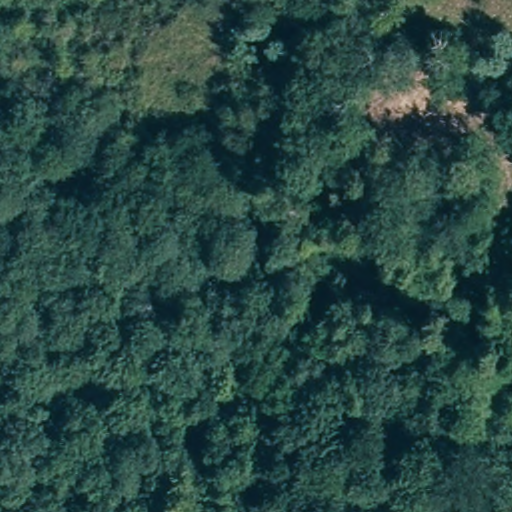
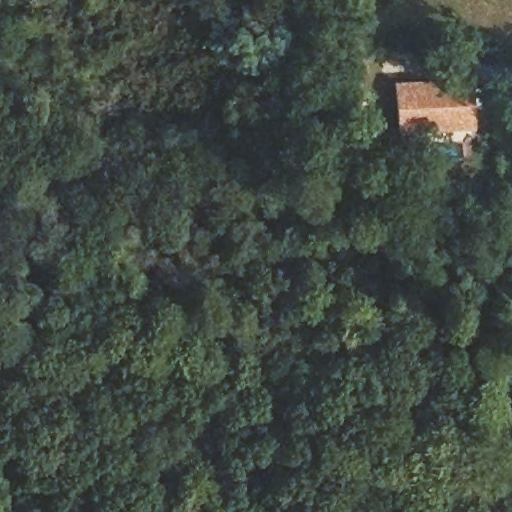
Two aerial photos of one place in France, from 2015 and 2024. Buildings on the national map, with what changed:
new [(471,80),(473,128),(396,132),(394,82),(471,80)]

